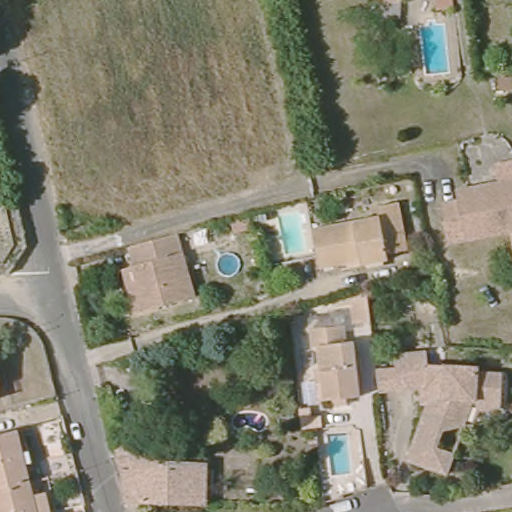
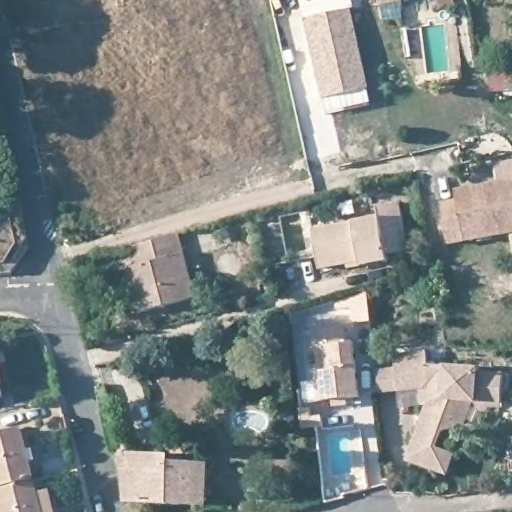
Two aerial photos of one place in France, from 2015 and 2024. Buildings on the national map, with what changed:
unchanged [(380,5),(379,0),(402,0),(380,5)]
unchanged [(454,7),(437,9),(436,0),(452,0),(454,7)]
new [(349,9),(367,90),(322,100),(304,19),(349,9)]
unchanged [(497,215),(492,184),(512,180),(512,231),(500,233),(497,215)]
unchanged [(497,215),(500,233),(445,244),(437,204),(455,201),(453,191),(492,184),(497,215)]
unchanged [(321,273),(314,235),(380,222),(378,212),(400,208),(407,255),(387,260),(389,267),(362,271),(350,273),(349,268),(321,273)]
unchanged [(135,247),(181,234),(200,297),(142,315),(135,292),(129,271),(141,267),(135,247)]
unchanged [(415,270),(432,266),(434,272),(432,272),(415,277),(415,270)]
unchanged [(350,312),(340,314),(335,315),(334,306),(338,305),(349,301),(367,296),(370,327),(353,328),(350,312)]
unchanged [(335,412),(334,405),(320,406),(317,388),(316,375),(322,375),(319,352),(315,352),(312,334),(344,331),(345,331),(347,347),(353,347),(359,402),(347,403),(348,411),(335,412)]
unchanged [(477,371),(502,374),(497,405),(473,402),(465,426),(444,430),(439,447),(456,452),(449,473),(410,460),(429,403),(427,387),(399,391),(379,393),(375,368),(395,365),(394,356),(426,351),(427,361),(477,367),(477,371)]
unchanged [(0,394),(0,380),(0,382),(3,393),(0,394)]
unchanged [(311,415),(312,425),(323,424),(324,433),(317,434),(304,433),(302,416),(311,415)]
unchanged [(19,432),(32,483),(0,492),(0,437),(19,432)]
unchanged [(203,470),(202,511),(127,508),(120,507),(119,476),(115,474),(110,452),(122,450),(126,459),(165,461),(165,467),(203,470)]
unchanged [(0,512),(0,492),(32,483),(35,497),(47,494),(51,512),(0,512)]

